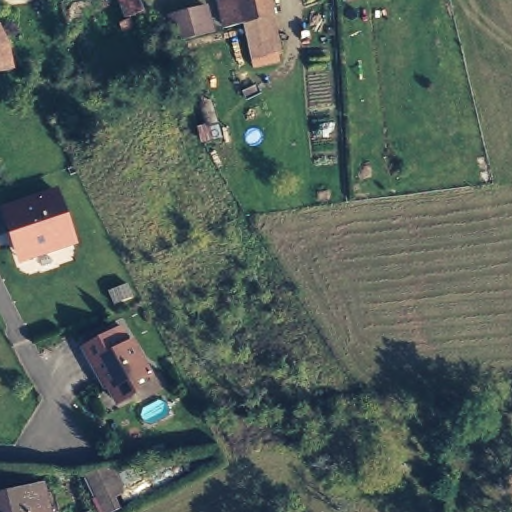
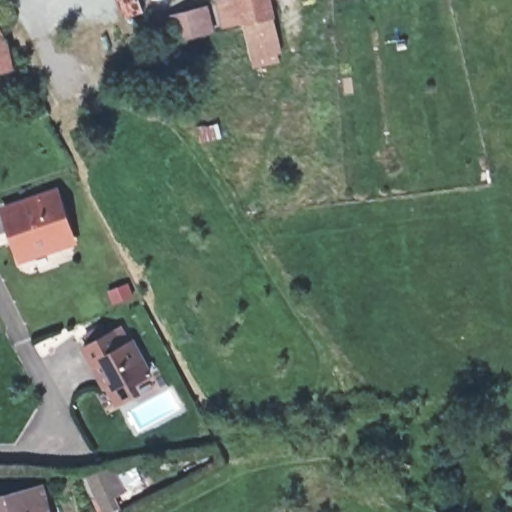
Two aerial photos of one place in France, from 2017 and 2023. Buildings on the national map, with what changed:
unchanged [(134,6),(132,0),(149,0),(134,6)]
unchanged [(282,52),(250,56),(242,20),(221,22),(216,0),(272,0),(282,52)]
unchanged [(212,26),(169,35),(163,11),(204,2),(212,26)]
unchanged [(0,69),(0,37),(9,67),(0,69)]
unchanged [(17,263),(0,206),(0,204),(57,187),(77,245),(17,263)]
unchanged [(122,341),(132,336),(148,368),(129,377),(134,387),(117,397),(96,360),(92,361),(83,344),(113,327),(122,341)]
unchanged [(98,512),(80,475),(108,461),(121,487),(186,457),(192,470),(128,502),(124,493),(117,497),(121,506),(110,512),(98,512)]
unchanged [(47,512),(0,512),(0,494),(41,483),(47,512)]

